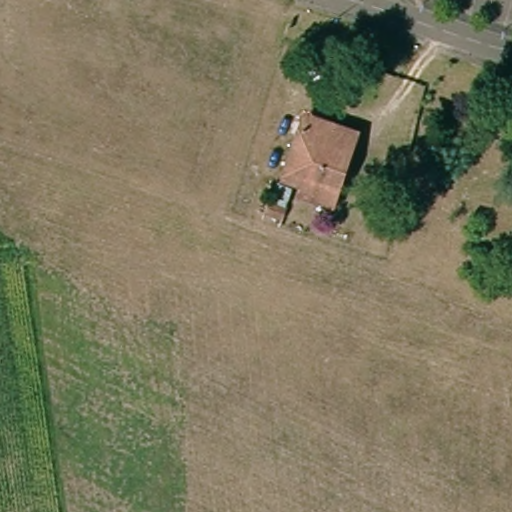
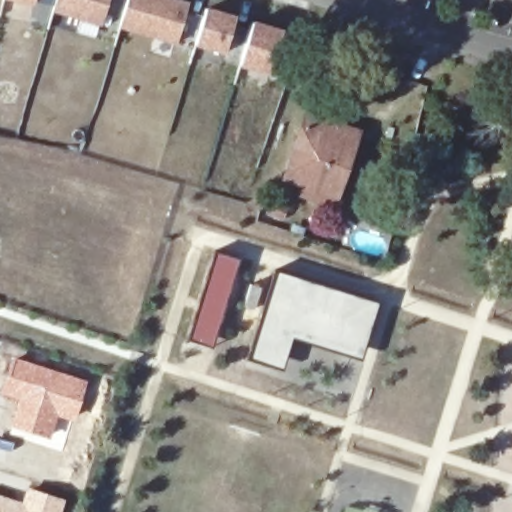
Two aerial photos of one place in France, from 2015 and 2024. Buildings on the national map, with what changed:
new [(4,0),(33,0),(32,4),(4,0)]
new [(55,0),(107,0),(100,25),(52,10),(55,0)]
new [(127,0),(179,0),(188,2),(176,43),(119,26),(127,0)]
new [(194,44),(205,5),(235,14),(223,52),(194,44)]
new [(240,66),(252,20),(282,29),(269,73),(240,66)]
unchanged [(332,204),(302,193),(305,185),(285,178),(303,124),(306,116),(327,123),(356,133),(350,151),(338,185),(332,204)]
new [(217,252),(239,258),(225,306),(211,346),(190,338),(217,252)]
new [(277,270),(378,302),(360,359),(292,337),(282,368),(249,357),(277,270)]
new [(12,356),(87,380),(74,421),(58,416),(51,439),(10,426),(18,401),(0,395),(0,393),(12,356)]
new [(21,501),(27,486),(65,499),(61,512),(0,512),(0,494),(21,501)]

